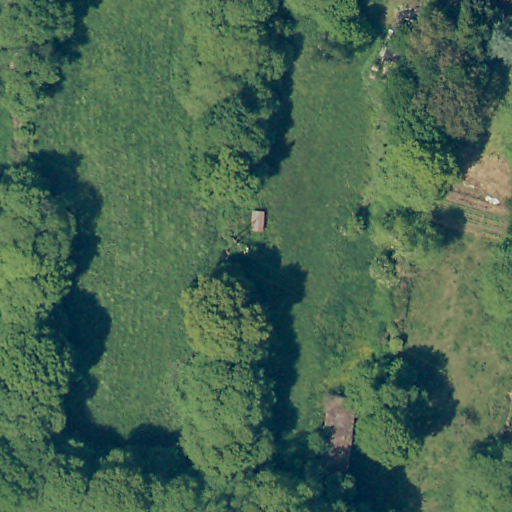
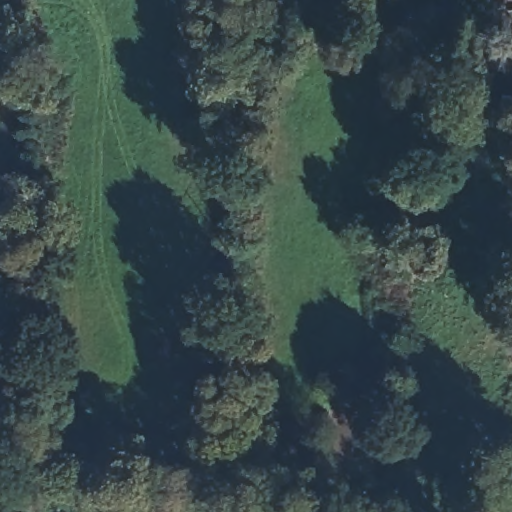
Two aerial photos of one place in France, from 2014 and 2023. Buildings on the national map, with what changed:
unchanged [(318,464),(325,394),(354,398),(348,466),(318,464)]

